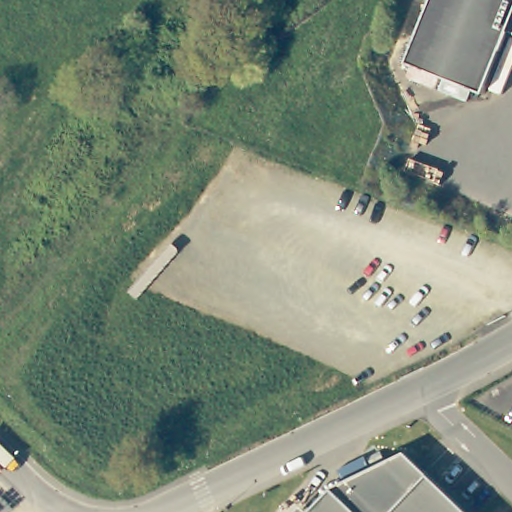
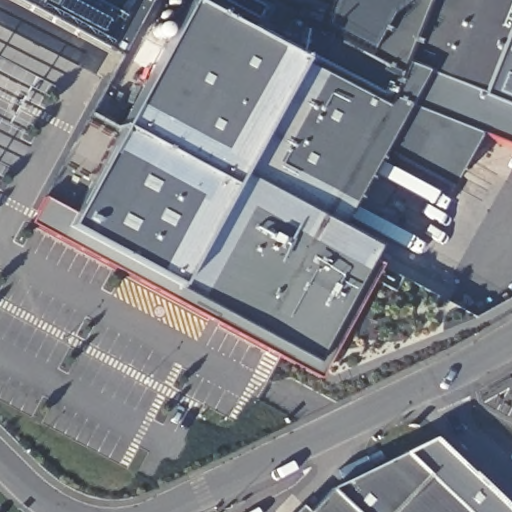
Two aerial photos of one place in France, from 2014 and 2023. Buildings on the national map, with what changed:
new [(453,187),(384,151),(346,226),(381,247),(373,260),(382,265),(321,378),(34,222),(48,197),(76,212),(193,0),(264,0),(371,56),(392,17),(415,0),(425,0),(401,60),(479,92),(504,29),(512,33),(512,147),(481,135),(453,187)]
unchanged [(504,29),(479,92),(401,60),(425,0),(512,0),(512,33),(504,29)]
unchanged [(419,463),(470,512),(312,512),(333,490),(335,488),(407,452),(419,463)]

